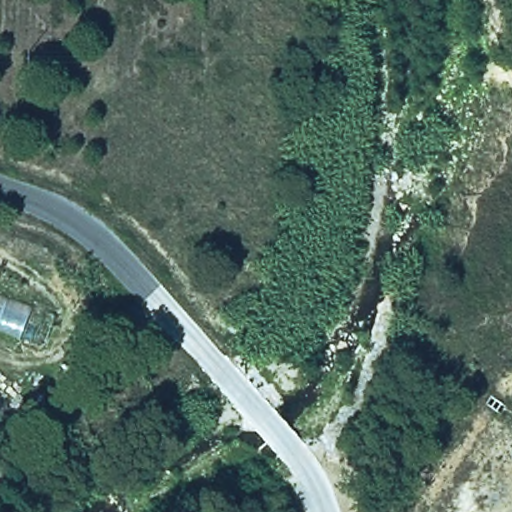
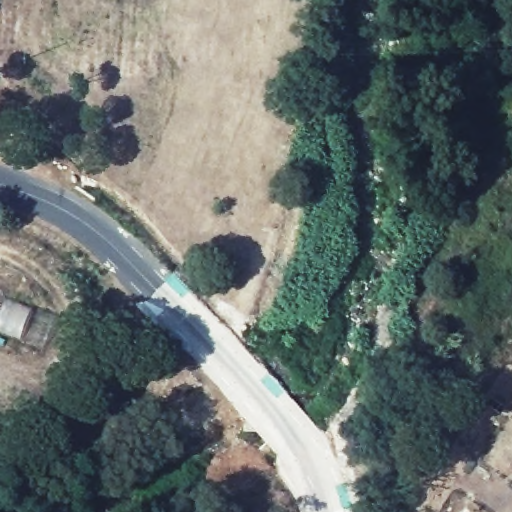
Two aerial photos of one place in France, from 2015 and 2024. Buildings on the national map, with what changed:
unchanged [(0,332),(0,292),(56,312),(43,347),(0,332)]

